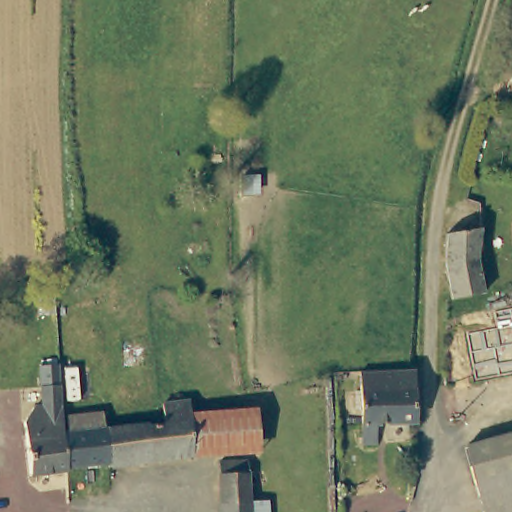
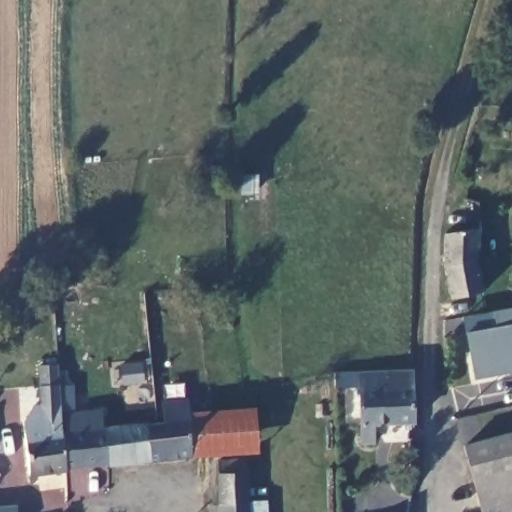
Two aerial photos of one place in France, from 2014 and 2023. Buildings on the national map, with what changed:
unchanged [(443,230),(479,227),(478,260),(483,291),(484,300),(449,301),(449,298),(443,230)]
new [(475,378),(464,316),(512,308),(512,373),(475,379),(475,378)]
unchanged [(381,421),(381,440),(361,441),(361,368),(418,368),(418,421),(381,421)]
unchanged [(28,478),(24,423),(35,409),(44,408),(43,387),(58,386),(63,436),(65,468),(65,474),(28,478)]
unchanged [(166,425),(164,406),(188,403),(189,415),(192,459),(107,467),(107,464),(107,431),(140,428),(159,426),(166,425)]
unchanged [(253,409),(256,452),(217,456),(213,413),(253,409)]
unchanged [(213,413),(217,456),(192,459),(189,415),(213,413)]
unchanged [(65,468),(63,436),(66,436),(65,417),(101,414),(102,431),(107,431),(107,464),(65,468)]
unchanged [(512,436),(512,477),(492,482),(472,488),(462,450),(512,436)]
unchanged [(219,512),(217,464),(246,460),(248,502),(267,499),(268,512),(219,512)]
unchanged [(492,482),(512,477),(512,512),(478,512),(472,488),(492,482)]

